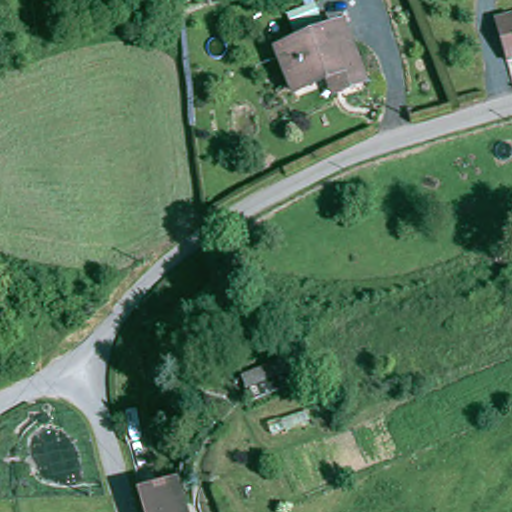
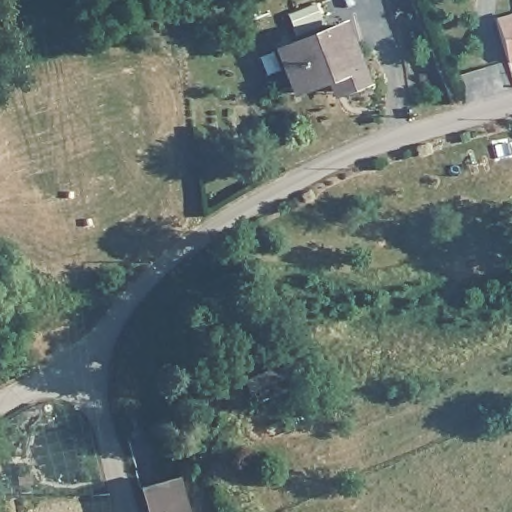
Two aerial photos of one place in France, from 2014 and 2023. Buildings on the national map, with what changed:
unchanged [(507,55),(497,13),(512,9),(512,54),(507,55)]
unchanged [(331,76),(297,89),(280,49),(345,22),(370,79),(344,89),(337,91),(331,76)]
unchanged [(142,489),(162,484),(174,481),(183,512),(149,512),(142,489)]

